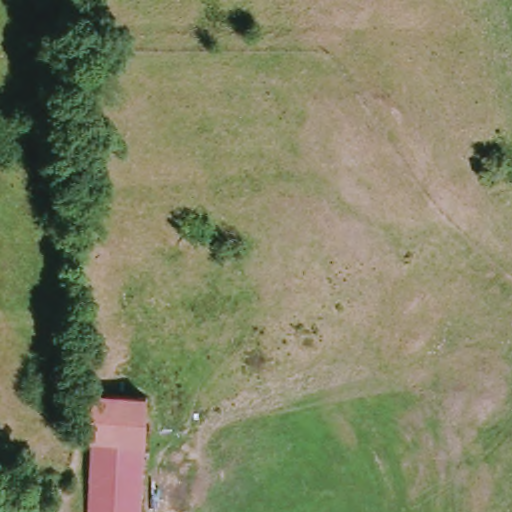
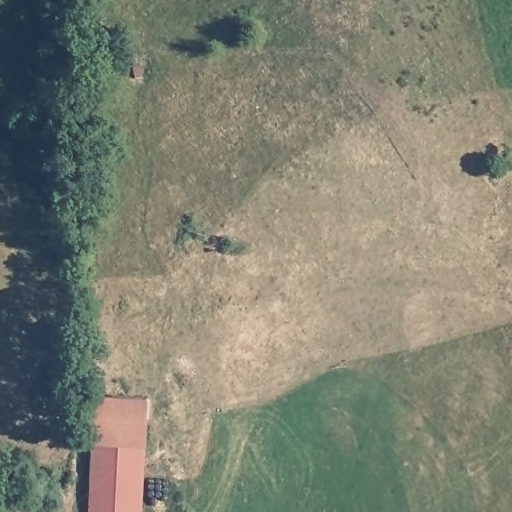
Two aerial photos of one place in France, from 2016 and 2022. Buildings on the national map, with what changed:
unchanged [(97,446),(98,399),(154,400),(151,448),(148,448),(100,446),(97,446)]
unchanged [(100,446),(148,448),(147,491),(96,490),(100,446)]
unchanged [(146,512),(94,512),(96,490),(147,491),(146,512)]

